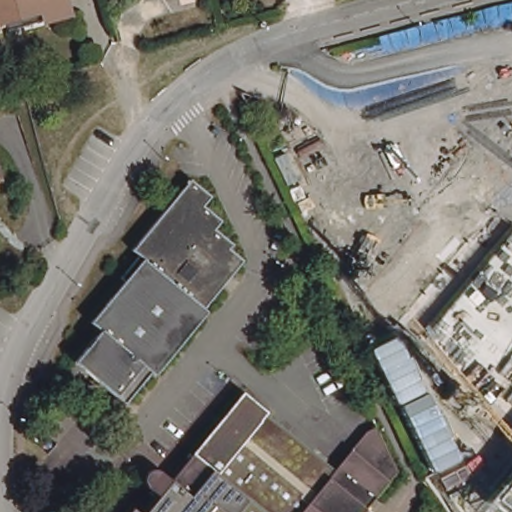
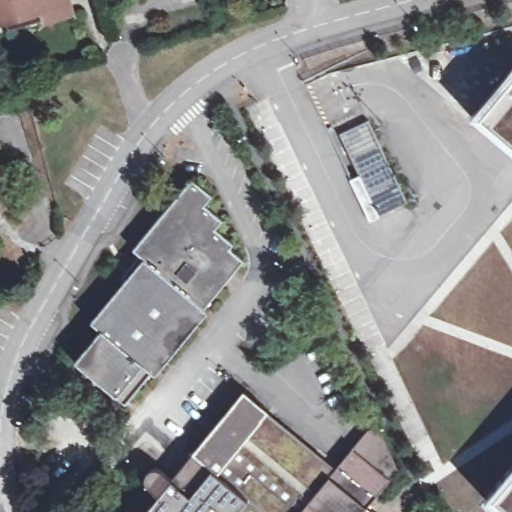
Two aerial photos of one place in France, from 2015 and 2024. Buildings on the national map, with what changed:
unchanged [(0,23),(0,0),(70,0),(74,15),(67,16),(47,21),(12,31),(9,21),(0,23)]
new [(512,67),(512,152),(470,116),(512,67)]
new [(367,120),(408,201),(370,221),(349,178),(357,174),(335,135),(367,120)]
unchanged [(2,179),(0,179),(0,173),(2,179)]
unchanged [(137,258),(135,257),(192,184),(214,202),(205,212),(224,226),(216,235),(235,251),(232,254),(245,266),(205,314),(175,289),(142,261),(137,258)]
unchanged [(175,289),(205,314),(130,406),(80,364),(103,335),(97,329),(130,288),(123,283),(142,261),(175,289)]
unchanged [(159,496),(148,486),(145,480),(148,472),(154,467),(160,469),(172,479),(244,392),(269,412),(262,420),(330,476),(365,431),(379,425),(400,469),(369,508),(374,512),(145,512),(159,496)]
new [(512,466),(512,512),(498,512),(484,500),(512,466)]

